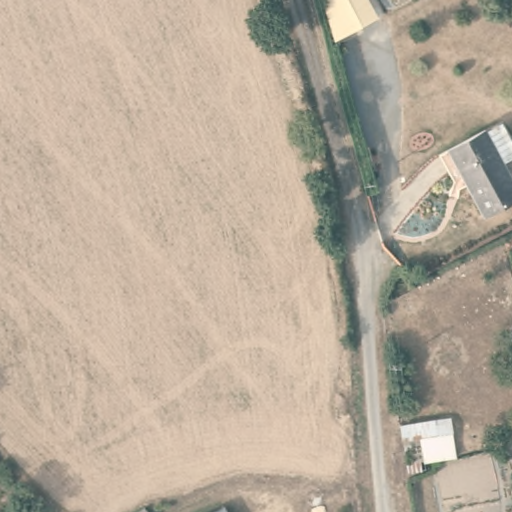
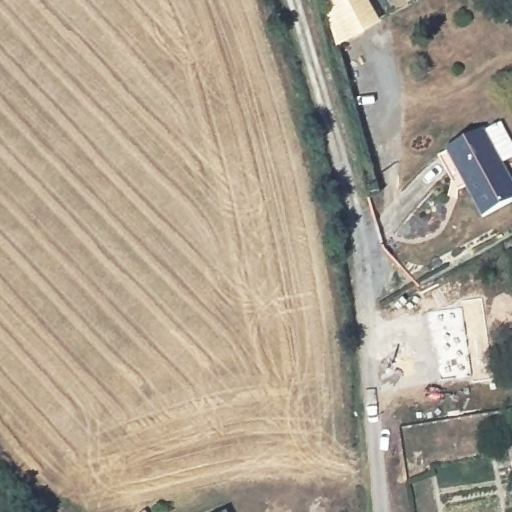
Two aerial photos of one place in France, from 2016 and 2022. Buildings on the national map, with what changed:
unchanged [(360,23),(341,33),(325,0),(366,0),(375,15),(361,22),(360,23)]
unchanged [(512,150),(503,153),(512,168),(512,196),(483,210),(448,146),(503,119),(512,137),(512,150)]
unchanged [(453,416),(458,456),(425,460),(426,469),(405,472),(403,448),(399,422),(453,416)]
unchanged [(227,508),(229,512),(218,512),(227,508)]

